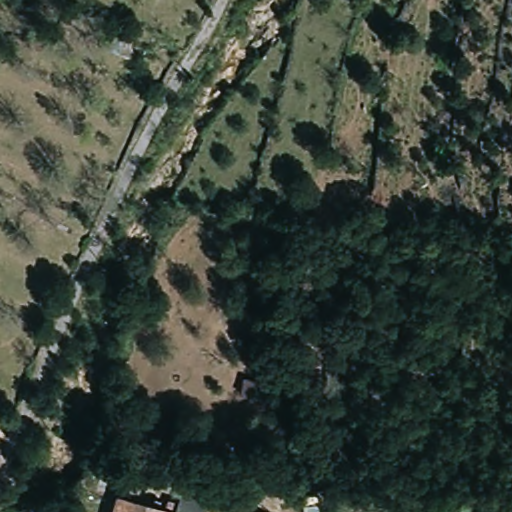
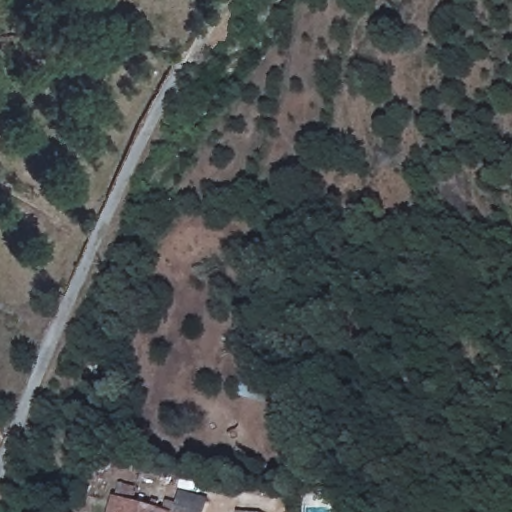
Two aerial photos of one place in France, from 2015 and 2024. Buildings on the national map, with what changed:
unchanged [(175,508),(181,487),(205,493),(200,512),(111,512),(115,495),(175,508)]

